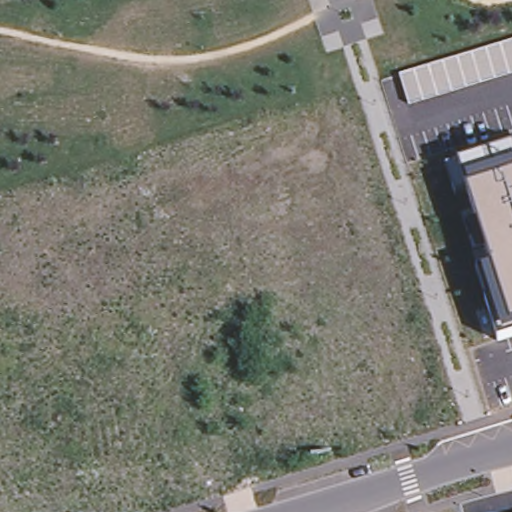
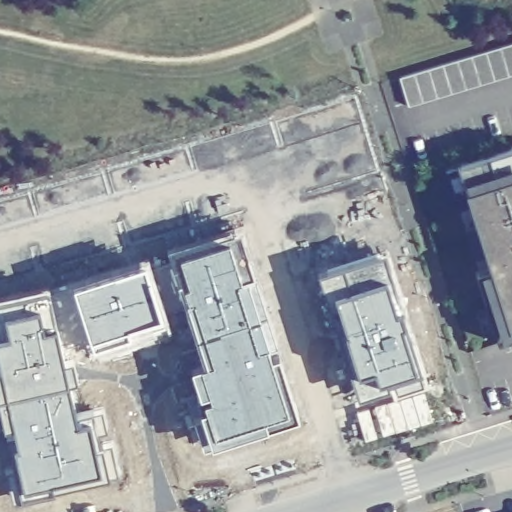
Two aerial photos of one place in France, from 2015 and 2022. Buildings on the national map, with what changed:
new [(400,76),(512,42),(512,74),(409,106),(400,76)]
unchanged [(482,271),(491,268),(467,190),(457,195),(447,167),(459,163),(512,148),(512,334),(503,336),(482,271)]
new [(192,398),(200,396),(192,372),(205,368),(185,309),(157,319),(142,264),(237,226),(297,421),(208,447),(192,398)]
new [(384,276),(412,383),(353,398),(323,296),(384,276)]
new [(34,305),(38,328),(50,326),(70,430),(83,423),(94,469),(15,492),(0,419),(0,311),(34,305)]

